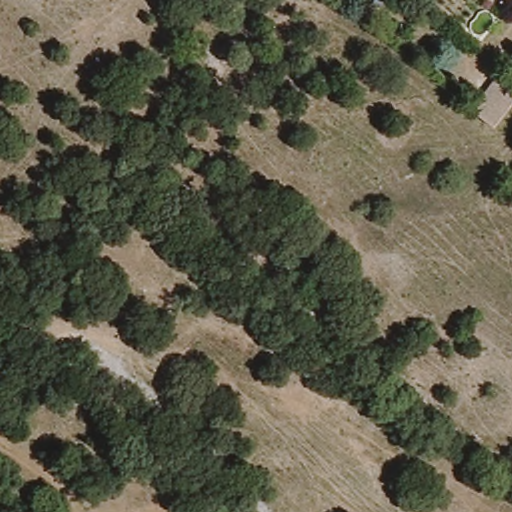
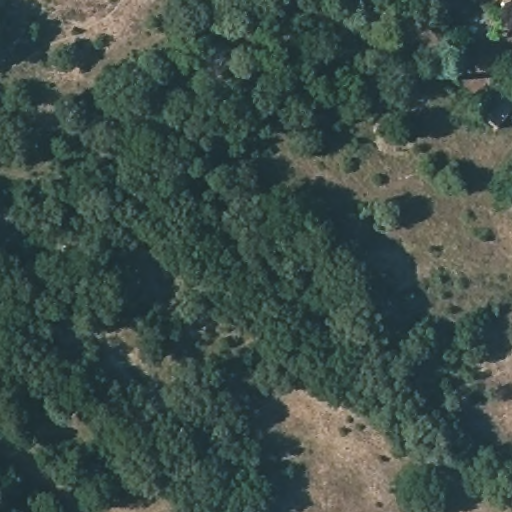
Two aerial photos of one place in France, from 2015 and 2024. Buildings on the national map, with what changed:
unchanged [(508,69),(512,72),(512,104),(492,127),(471,110),(508,69)]

